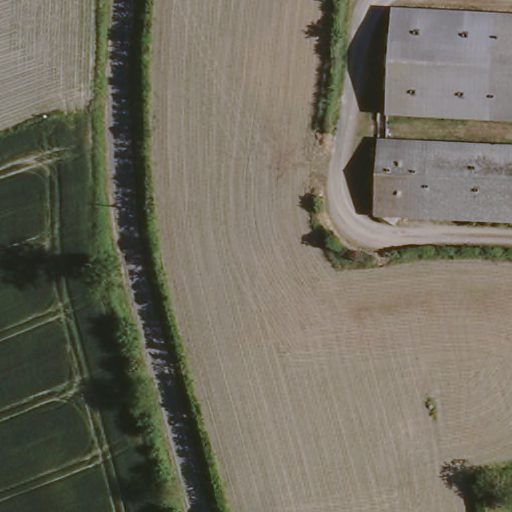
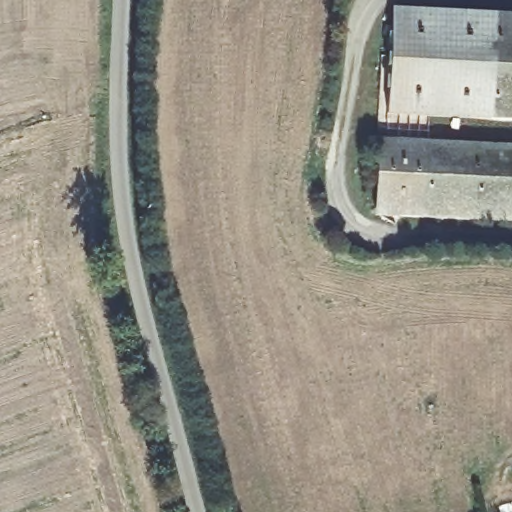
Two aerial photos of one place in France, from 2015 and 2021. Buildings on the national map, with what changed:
unchanged [(386,7),(500,11),(512,12),(512,116),(382,111),(386,7)]
unchanged [(381,137),(512,142),(512,216),(377,211),(381,137)]

